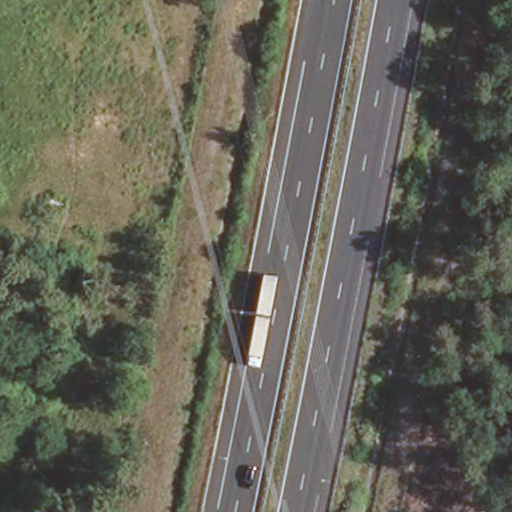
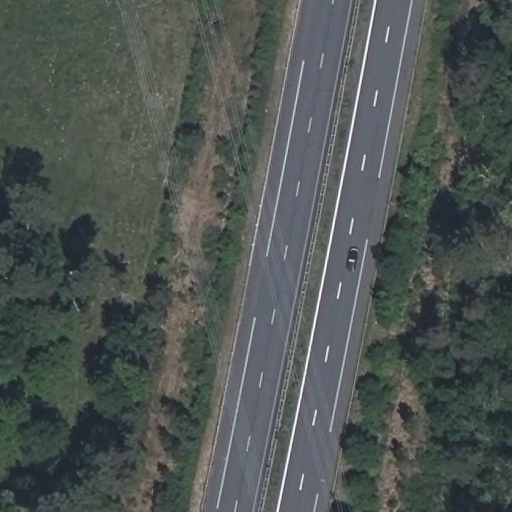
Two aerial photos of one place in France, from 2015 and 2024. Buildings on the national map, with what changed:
[]

